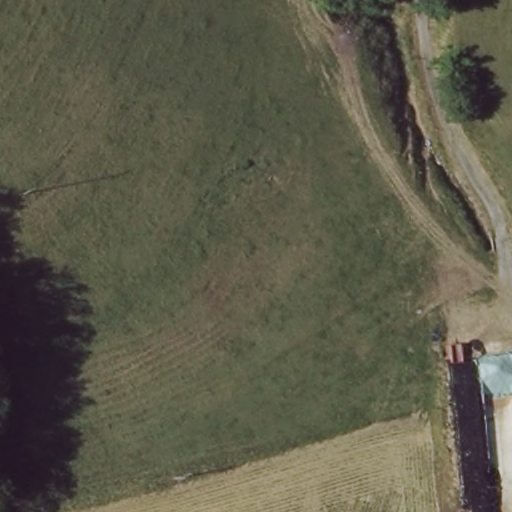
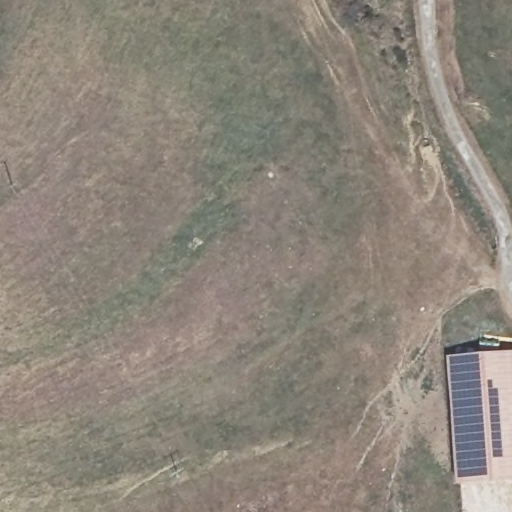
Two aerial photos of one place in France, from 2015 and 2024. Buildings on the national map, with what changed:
new [(512,353),(512,360),(512,480),(452,484),(443,358),(512,353)]

